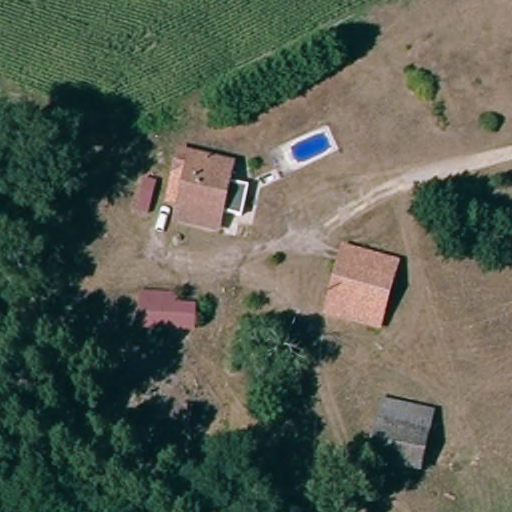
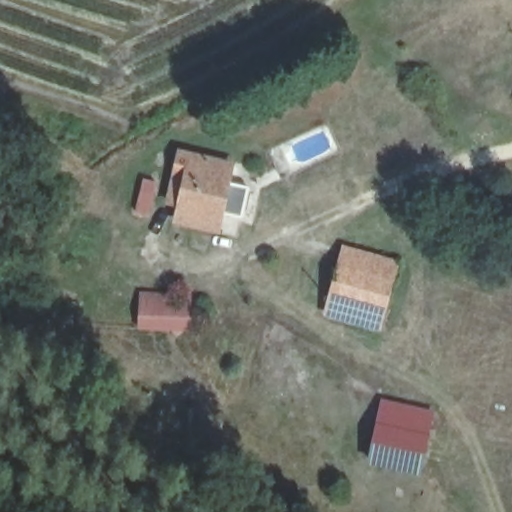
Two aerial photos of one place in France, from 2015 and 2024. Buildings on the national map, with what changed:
unchanged [(175,225),(179,200),(171,200),(182,150),(242,160),(222,233),(175,225)]
unchanged [(326,317),(345,244),(402,258),(384,330),(326,317)]
unchanged [(143,290),(178,292),(177,304),(201,305),(199,332),(141,331),(143,290)]
unchanged [(373,470),(383,397),(438,408),(422,483),(373,470)]

